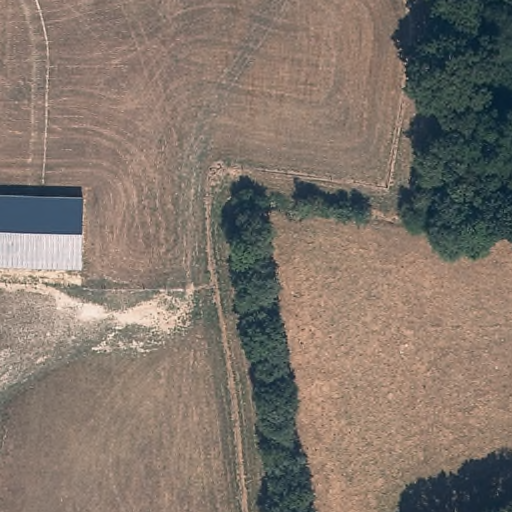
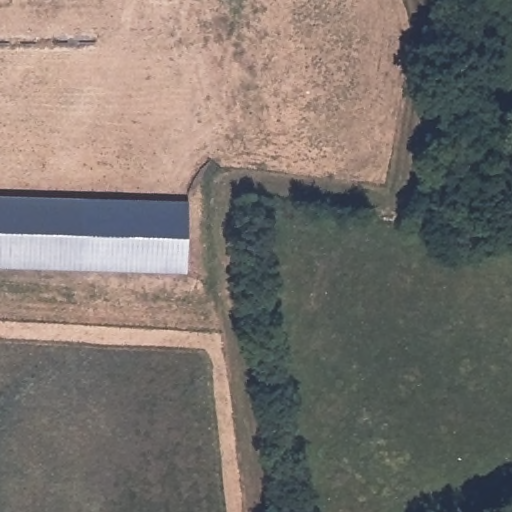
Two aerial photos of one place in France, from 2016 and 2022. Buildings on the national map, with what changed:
unchanged [(82,196),(80,269),(0,267),(0,194),(82,196)]
new [(80,269),(82,196),(187,199),(186,272),(80,269)]

